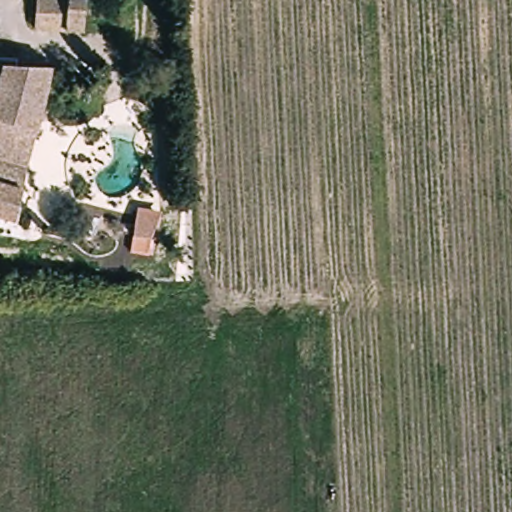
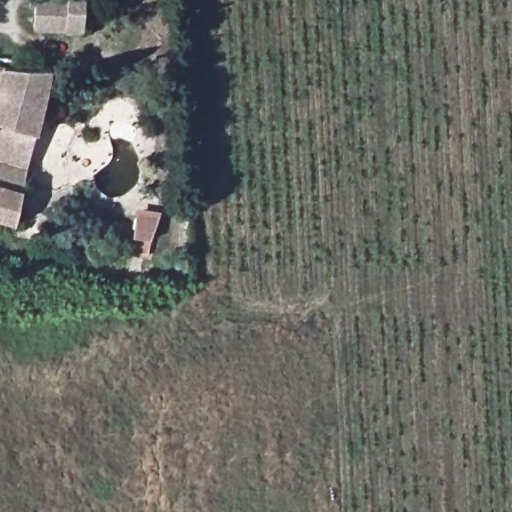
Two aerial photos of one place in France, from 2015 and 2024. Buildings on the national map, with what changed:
unchanged [(33,30),(35,0),(65,0),(82,1),(80,33),(33,30)]
unchanged [(15,224),(0,219),(0,65),(50,67),(15,224)]
unchanged [(162,225),(154,246),(150,263),(132,259),(139,221),(162,225)]

